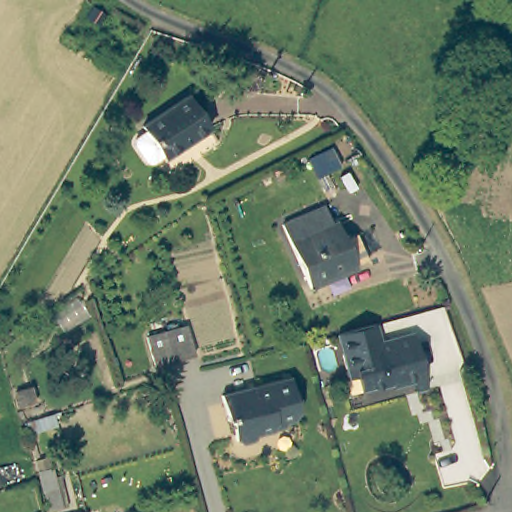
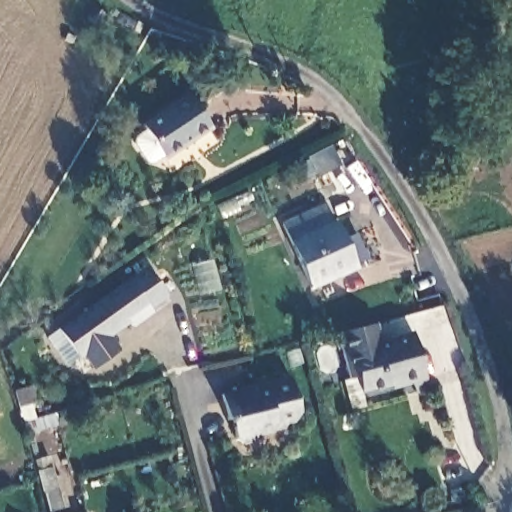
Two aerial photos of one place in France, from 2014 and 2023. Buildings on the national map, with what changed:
unchanged [(93,5),(106,13),(98,25),(86,16),(93,5)]
unchanged [(71,41),(64,39),(66,33),(74,36),(71,41)]
unchanged [(169,154),(147,122),(190,92),(212,124),(169,154)]
unchanged [(169,154),(145,169),(125,137),(147,122),(169,154)]
unchanged [(315,167),(306,147),(329,137),(338,156),(315,167)]
unchanged [(332,221),(338,237),(350,232),(361,258),(350,263),(351,267),(305,286),(280,222),(321,205),(328,223),(332,221)]
new [(146,267),(167,295),(151,310),(152,311),(134,326),(130,321),(112,337),(122,350),(96,369),(84,355),(80,358),(60,330),(128,279),(146,267)]
unchanged [(417,393),(415,382),(405,385),(404,381),(361,393),(357,378),(348,380),(346,370),(342,353),(344,352),(340,335),(339,333),(344,332),(377,324),(377,325),(383,342),(415,335),(426,379),(428,390),(417,393)]
demolished [(154,365),(146,335),(184,325),(192,354),(154,365)]
unchanged [(290,425),(271,429),(268,435),(252,438),(250,444),(239,446),(234,443),(229,424),(225,425),(219,400),(287,382),(296,415),(290,425)]

